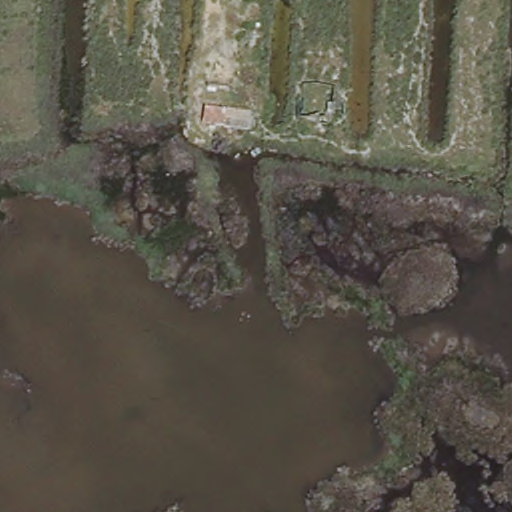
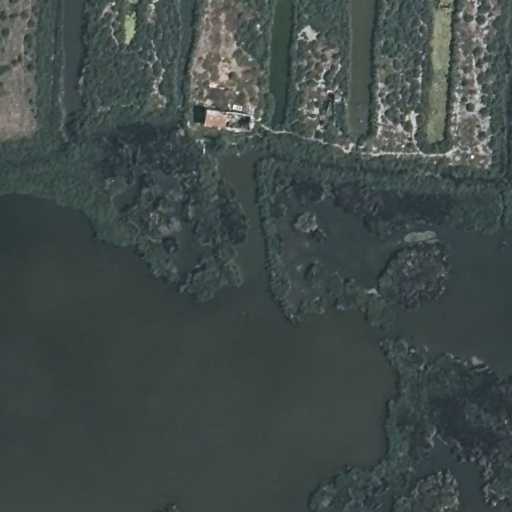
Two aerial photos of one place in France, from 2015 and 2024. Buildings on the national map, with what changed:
unchanged [(203,109),(249,110),(249,129),(203,127),(203,109)]

